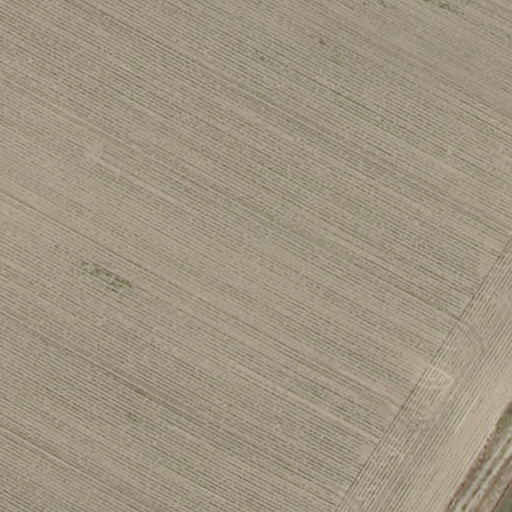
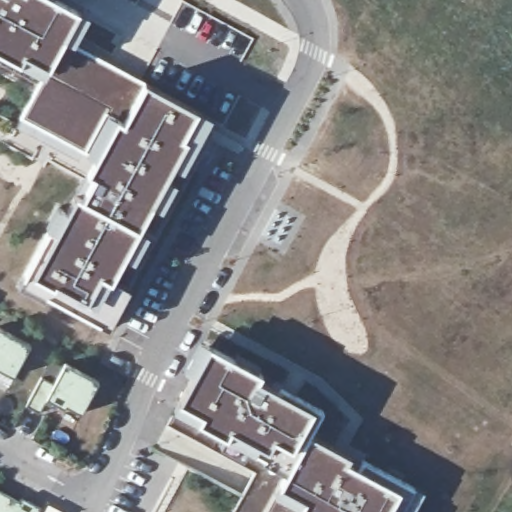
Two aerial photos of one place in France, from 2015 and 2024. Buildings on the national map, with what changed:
new [(62,0),(87,13),(72,43),(218,118),(129,288),(109,278),(94,303),(42,276),(100,161),(23,118),(47,76),(0,52),(0,0),(62,0)]
new [(31,343),(14,375),(0,368),(0,327),(31,343)]
new [(330,411),(317,436),(415,489),(403,512),(304,512),(280,499),(302,453),(281,440),(263,460),(182,415),(211,360),(218,347),(330,411)]
new [(42,375),(54,382),(65,361),(99,380),(82,412),(66,404),(64,406),(47,397),(40,411),(26,404),(42,375)]
new [(38,512),(0,512),(0,489),(26,503),(28,498),(42,506),(38,512)]

